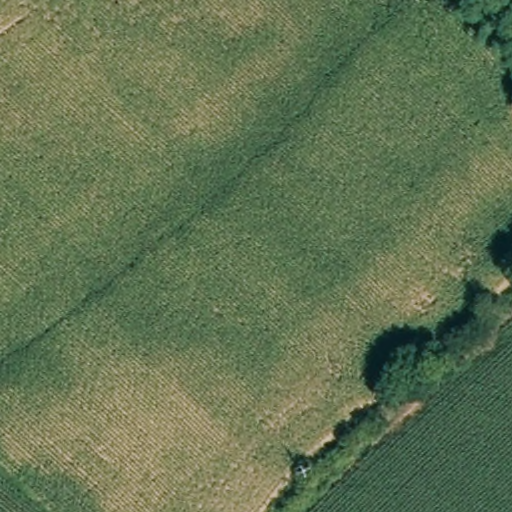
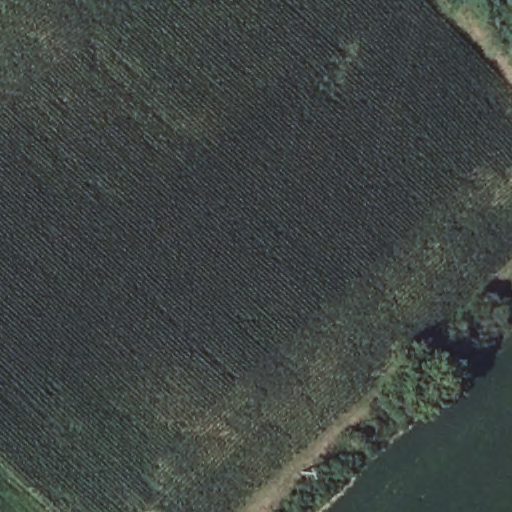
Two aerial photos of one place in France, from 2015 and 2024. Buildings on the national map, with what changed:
[]

